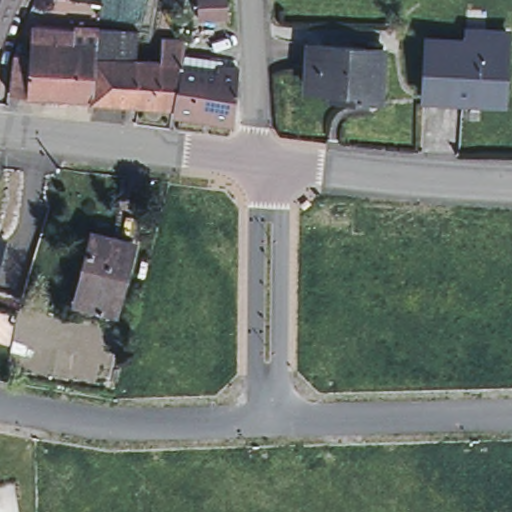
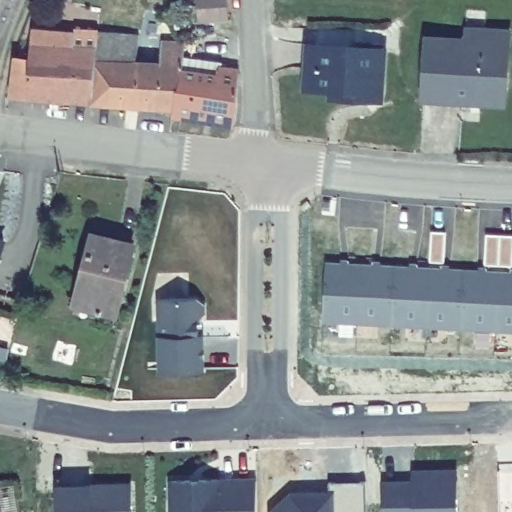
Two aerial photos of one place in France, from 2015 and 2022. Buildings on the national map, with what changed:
unchanged [(0,39),(0,0),(17,0),(16,4),(14,3),(0,39)]
unchanged [(200,21),(199,0),(229,0),(230,20),(200,21)]
unchanged [(31,45),(37,14),(67,15),(61,47),(93,50),(96,50),(93,102),(27,98),(8,95),(15,56),(30,58),(31,45)]
unchanged [(465,39),(465,29),(507,31),(503,100),(424,96),(426,37),(465,39)]
unchanged [(93,50),(95,32),(138,35),(137,64),(135,105),(93,102),(96,50),(93,50)]
unchanged [(161,61),(164,39),(178,40),(186,40),(182,71),(177,107),(139,105),(135,105),(137,64),(161,61)]
unchanged [(186,40),(187,40),(183,71),(221,77),(222,68),(240,71),(240,92),(235,124),(175,115),(177,107),(182,71),(186,40)]
unchanged [(382,46),(379,96),(332,95),(332,85),(308,84),(312,42),(382,46)]
unchanged [(113,240),(115,237),(134,242),(119,307),(104,308),(102,312),(99,310),(100,307),(77,299),(83,280),(82,275),(83,270),(86,266),(94,235),(113,240)]
unchanged [(0,250),(0,239),(3,240),(0,250)]
new [(512,273),(512,335),(322,325),(326,262),(512,273)]
new [(203,304),(204,312),(202,315),(202,334),(202,370),(160,370),(159,298),(197,297),(203,304)]
new [(410,482),(412,472),(456,473),(457,512),(382,512),(381,485),(410,482)]
new [(512,472),(512,512),(499,512),(499,472),(512,472)]
new [(219,481),(255,480),(257,512),(167,512),(167,497),(173,495),(172,482),(219,481)]
new [(132,512),(55,512),(55,482),(90,481),(132,481),(132,512)]
new [(329,483),(365,483),(365,512),(333,512),(332,489),(328,489),(329,483)]
new [(328,489),(332,489),(333,512),(269,512),(269,490),(328,489)]

